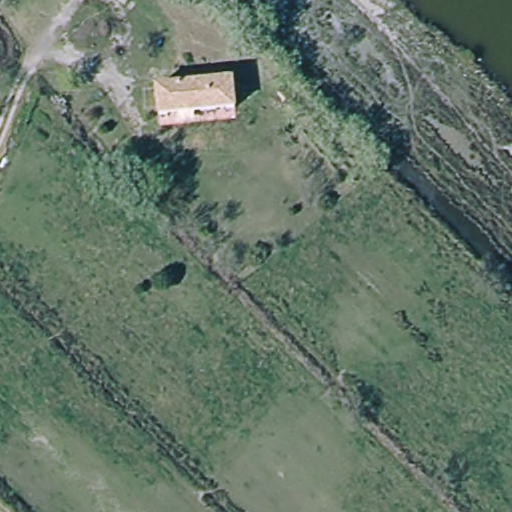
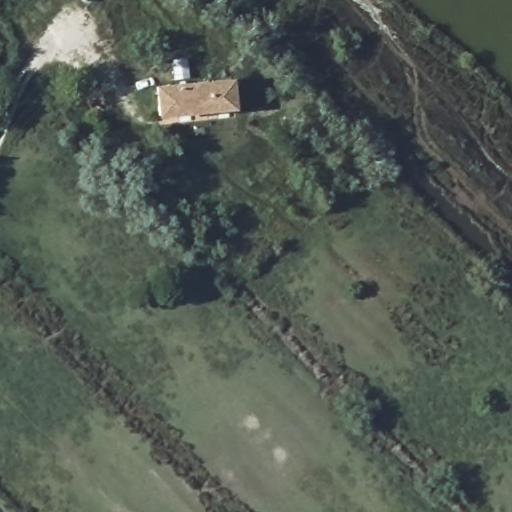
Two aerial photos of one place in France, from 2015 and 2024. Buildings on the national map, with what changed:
unchanged [(238,113),(156,119),(154,86),(239,78),(238,113)]

